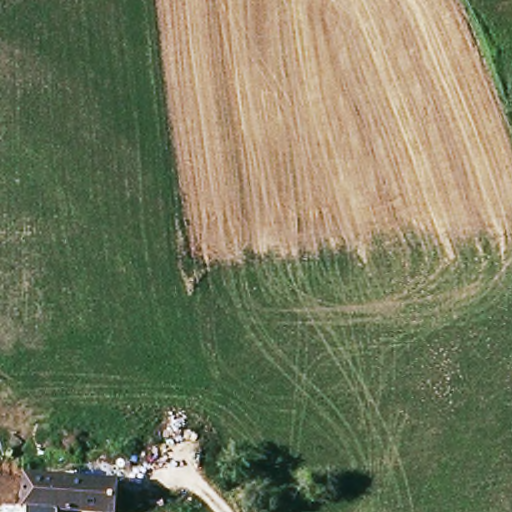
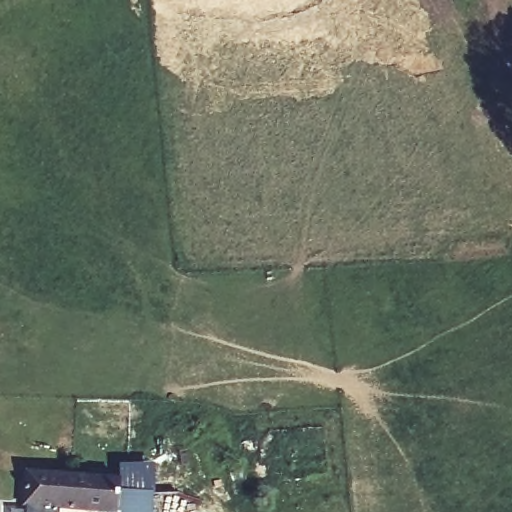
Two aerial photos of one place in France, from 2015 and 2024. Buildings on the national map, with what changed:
new [(122,478),(120,478),(119,466),(152,467),(150,495),(150,512),(121,512),(122,478)]
unchanged [(29,477),(122,478),(121,512),(26,512),(29,477)]

